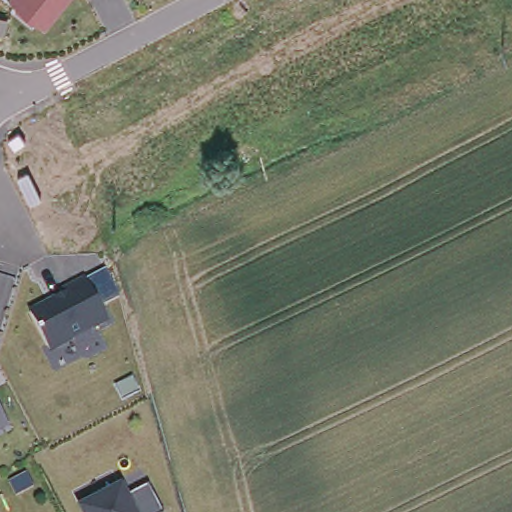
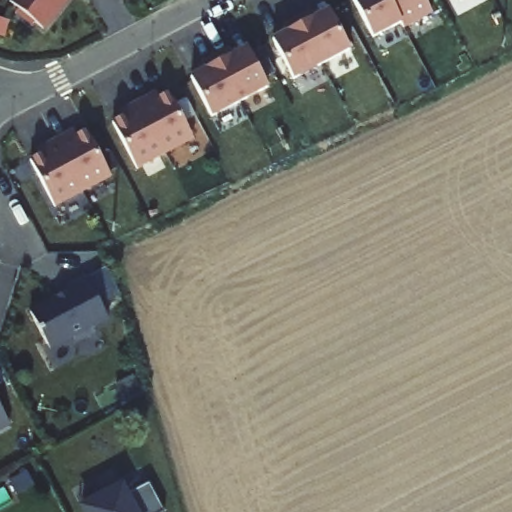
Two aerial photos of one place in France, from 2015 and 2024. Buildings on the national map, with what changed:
unchanged [(40,28),(8,2),(10,0),(63,0),(40,28)]
new [(399,23),(371,38),(351,0),(387,0),(399,23)]
new [(430,13),(402,28),(399,23),(387,0),(423,0),(430,13)]
new [(453,1),(452,0),(455,0),(453,1)]
new [(309,12),(313,19),(327,11),(348,50),(319,65),(296,19),(309,12)]
new [(286,33),(282,26),(296,19),(319,65),(291,79),(271,41),(286,33)]
new [(226,49),(230,56),(245,49),(265,87),(237,102),(213,56),(226,49)]
new [(203,70),(199,63),(213,56),(237,102),(208,117),(188,78),(203,70)]
new [(149,96),(151,101),(167,93),(191,139),(163,153),(136,102),(149,96)]
new [(125,115),(123,109),(136,102),(163,153),(134,168),(110,123),(125,115)]
new [(68,133),(70,139),(85,131),(109,176),(81,191),(54,140),(68,133)]
new [(44,153),(41,147),(54,140),(81,191),(53,206),(29,160),(44,153)]
unchanged [(106,267),(120,295),(101,305),(109,322),(94,330),(96,334),(76,344),(74,339),(50,352),(28,310),(63,291),(63,288),(85,276),(106,267)]
unchanged [(0,412),(0,407),(2,411),(0,412)]
unchanged [(81,512),(78,506),(123,482),(128,494),(148,484),(163,512),(81,512)]

